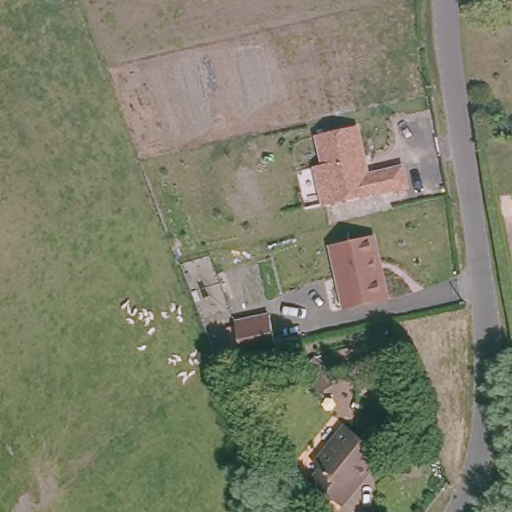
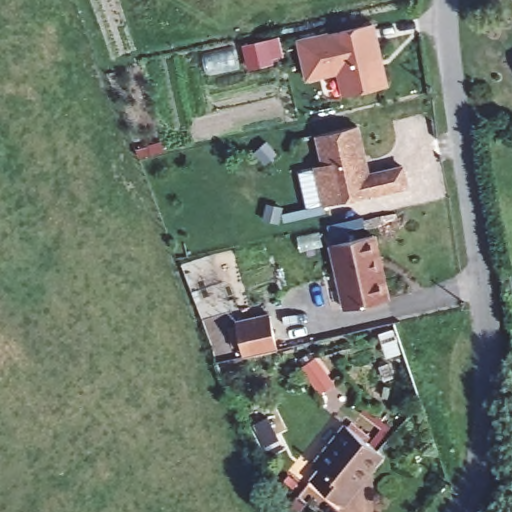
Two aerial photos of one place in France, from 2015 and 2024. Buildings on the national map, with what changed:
new [(371,25),(379,61),(375,61),(376,68),(381,67),(384,86),(342,95),(337,73),(306,79),(297,41),(371,25)]
new [(272,62),(248,68),(243,44),(266,39),(272,62)]
unchanged [(369,172),(406,164),(409,186),(323,204),(316,166),(322,164),(316,134),(361,124),(369,172)]
unchanged [(331,243),(373,234),(387,299),(345,308),(331,243)]
unchanged [(269,312),(278,347),(251,352),(243,353),(236,319),(269,312)]
unchanged [(311,354),(329,379),(318,388),(299,364),(311,354)]
unchanged [(328,494),(304,472),(314,460),(309,454),(344,419),(379,455),(363,471),(333,499),(328,494)]

